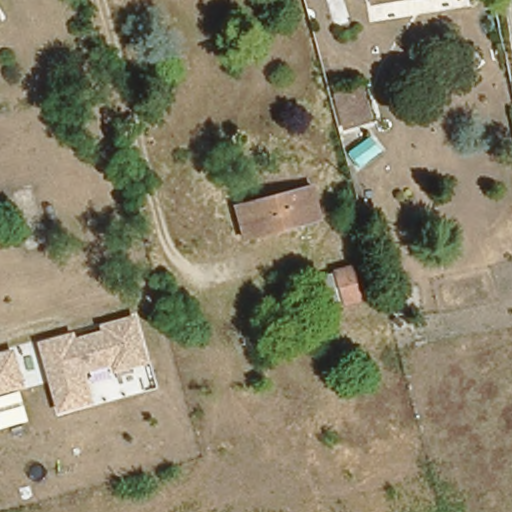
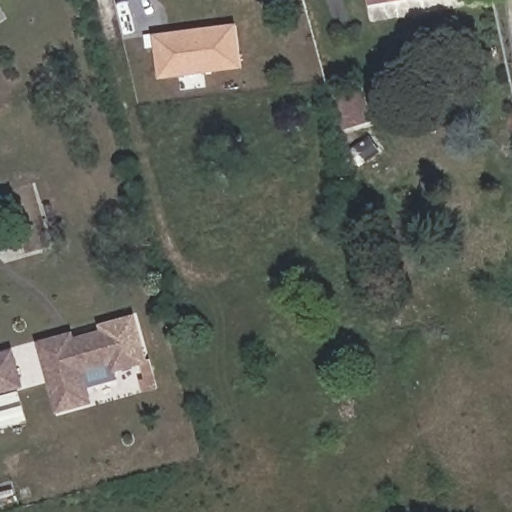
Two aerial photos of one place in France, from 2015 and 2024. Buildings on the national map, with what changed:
unchanged [(4,0),(6,4),(0,8),(0,0),(4,0)]
new [(237,22),(244,68),(159,79),(153,33),(237,22)]
unchanged [(360,83),(368,117),(359,119),(338,125),(336,119),(329,91),(350,86),(360,83)]
demolished [(318,215),(245,236),(236,204),(308,185),(310,184),(318,215)]
demolished [(321,312),(312,282),(348,271),(357,302),(321,312)]
unchanged [(114,375),(111,367),(87,374),(97,402),(59,416),(37,338),(71,329),(75,334),(102,329),(100,322),(136,312),(153,365),(114,375)]
unchanged [(0,395),(0,351),(14,347),(25,389),(0,395)]

